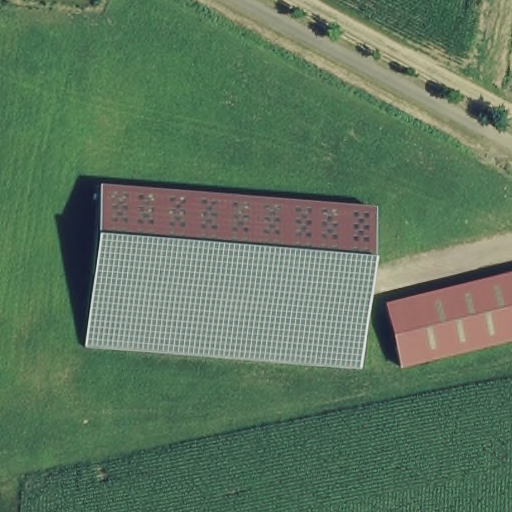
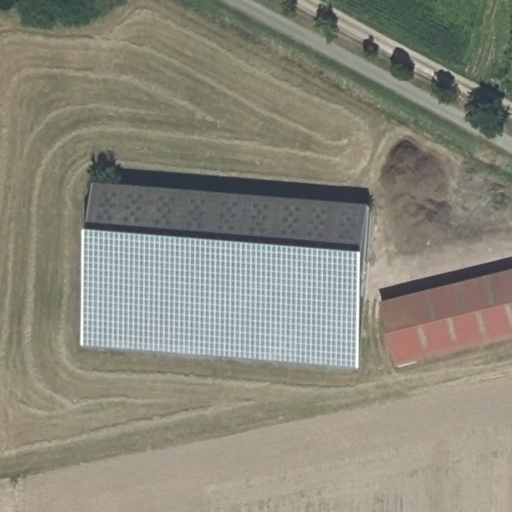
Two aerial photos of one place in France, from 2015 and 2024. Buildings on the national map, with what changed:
unchanged [(357,367),(83,347),(97,184),(369,206),(357,367)]
unchanged [(386,302),(512,277),(512,343),(399,367),(386,302)]

